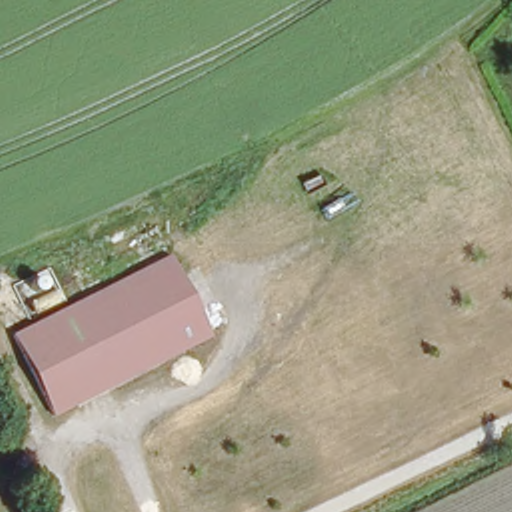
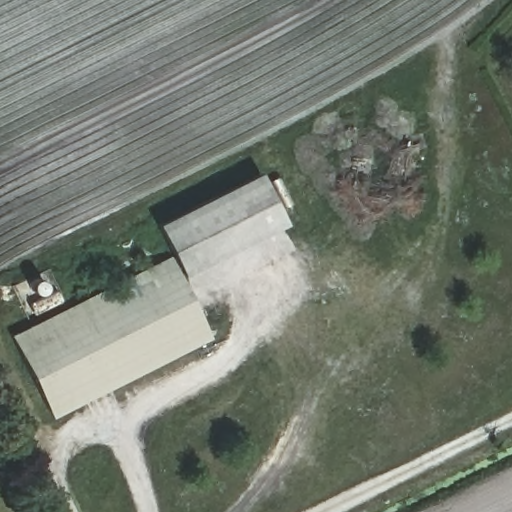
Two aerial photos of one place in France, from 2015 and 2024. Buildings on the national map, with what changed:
new [(257,170),(284,224),(179,275),(169,254),(154,223),(257,170)]
unchanged [(169,254),(179,275),(208,340),(81,403),(41,315),(169,254)]
unchanged [(47,420),(9,331),(41,315),(81,403),(47,420)]

